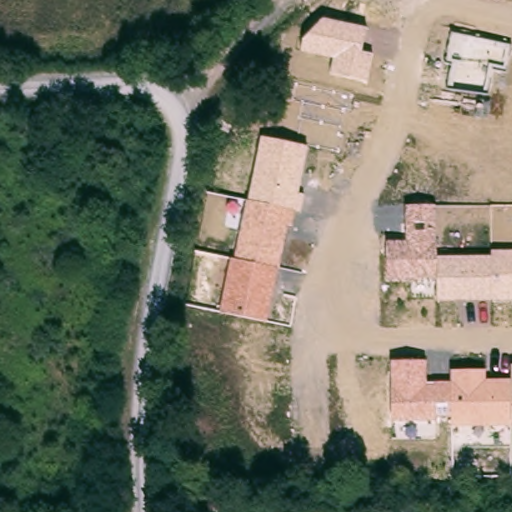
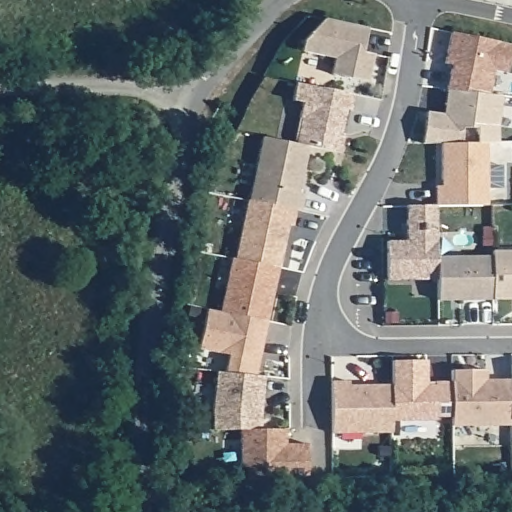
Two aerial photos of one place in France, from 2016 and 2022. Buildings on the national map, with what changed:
unchanged [(331,74),(333,58),(302,51),(303,39),(323,20),(367,29),(362,53),(374,56),(366,82),(331,74)]
unchanged [(454,64),(447,61),(453,32),(512,45),(506,72),(492,69),(487,95),(448,90),(454,64)]
new [(295,82),(353,94),(352,109),(346,109),(342,134),(345,135),(341,152),(308,146),(294,143),(301,101),(292,101),(295,82)]
new [(489,205),(435,205),(436,185),(442,185),(442,142),(422,142),(426,112),(444,114),(448,90),(487,95),(501,96),(499,140),(487,142),(489,205)]
unchanged [(221,310),(231,259),(236,259),(262,137),(308,146),(299,195),(305,196),(301,214),(296,213),(292,229),(288,228),(266,320),(221,310)]
unchanged [(385,242),(407,240),(406,205),(435,205),(438,257),(492,256),(493,252),(512,252),(512,299),(438,300),(437,280),(387,281),(385,242)]
new [(226,372),(228,353),(200,347),(208,308),(221,310),(266,320),(256,375),(226,372)]
unchanged [(511,420),(511,426),(452,426),(451,415),(435,416),(435,421),(393,422),(392,361),(426,360),(426,383),(451,382),(451,370),(487,370),(487,380),(512,380),(512,366),(512,420),(511,420)]
new [(262,429),(240,430),(213,430),(212,408),(216,371),(226,372),(256,375),(264,376),(262,429)]
new [(331,380),(350,380),(350,384),(392,383),(393,422),(393,432),(332,433),(331,380)]
new [(286,442),(307,443),(308,478),(241,478),(240,430),(262,429),(285,428),(286,442)]

